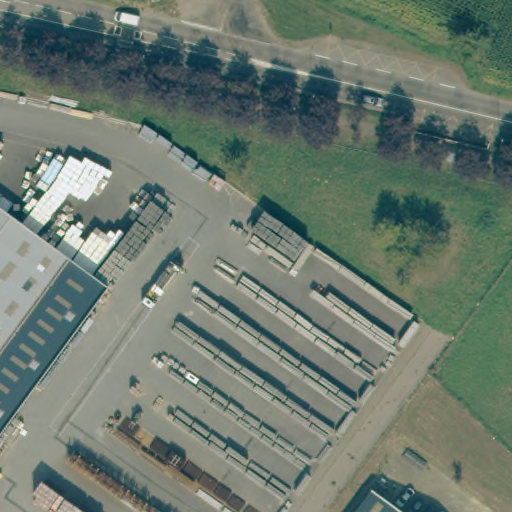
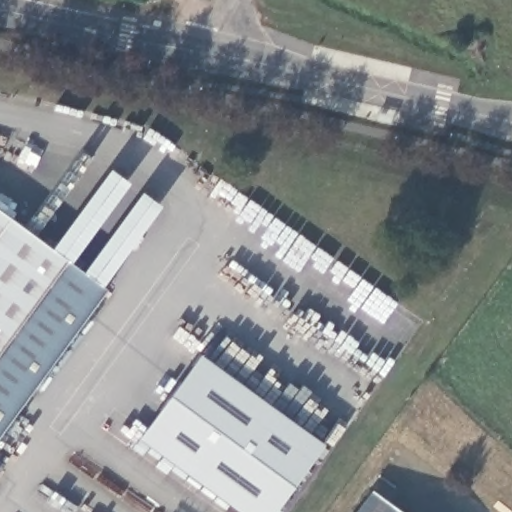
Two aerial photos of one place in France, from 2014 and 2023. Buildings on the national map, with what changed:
unchanged [(66,266),(0,357),(0,219),(66,266)]
unchanged [(66,266),(104,291),(0,436),(0,357),(66,266)]
new [(324,443),(274,512),(239,512),(139,438),(201,353),(324,443)]
unchanged [(404,512),(352,512),(370,487),(404,512)]

